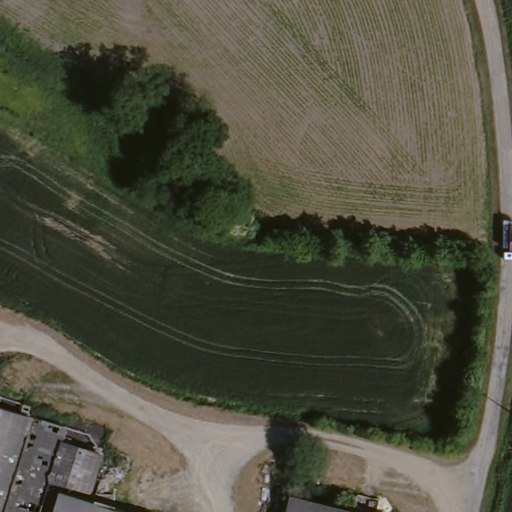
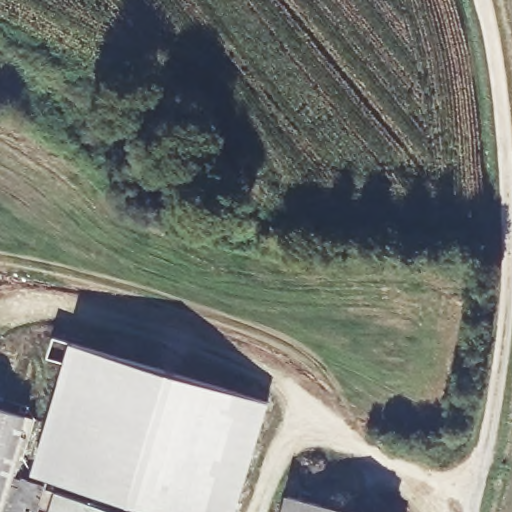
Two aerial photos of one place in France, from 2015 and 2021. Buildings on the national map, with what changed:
new [(49,357),(54,337),(74,343),(269,403),(237,512),(157,512),(33,474),(68,363),(49,357)]
new [(11,475),(46,486),(39,512),(0,512),(0,407),(29,416),(11,475)]
demolished [(103,458),(89,499),(85,512),(0,512),(0,412),(69,431),(65,447),(103,458)]
new [(51,512),(57,492),(124,512),(51,512)]
demolished [(130,512),(85,512),(89,499),(130,512)]
unchanged [(343,512),(290,512),(292,501),(343,512)]

